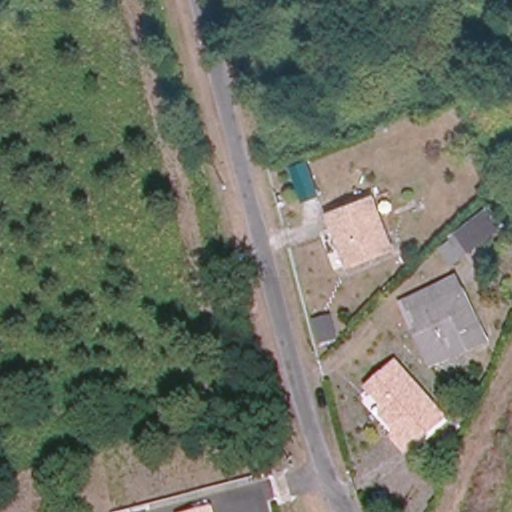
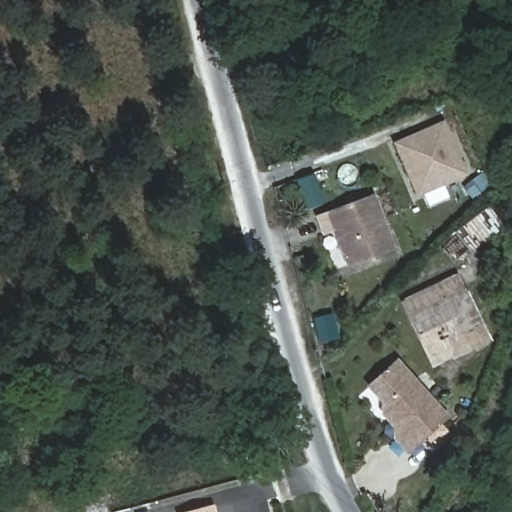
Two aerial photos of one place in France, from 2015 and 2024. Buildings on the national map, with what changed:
new [(418,197),(393,142),(445,119),(469,174),(418,197)]
unchanged [(316,185),(301,191),(292,166),(307,160),(316,185)]
unchanged [(393,248),(348,265),(328,213),(373,196),(393,248)]
unchanged [(470,251),(454,262),(441,247),(453,237),(452,236),(488,208),(502,226),(470,251)]
unchanged [(426,350),(403,302),(456,277),(462,287),(463,288),(487,339),(454,356),(453,354),(432,364),(426,350)]
unchanged [(365,387),(396,359),(448,417),(405,455),(391,440),(393,430),(379,415),(380,404),(365,387)]

